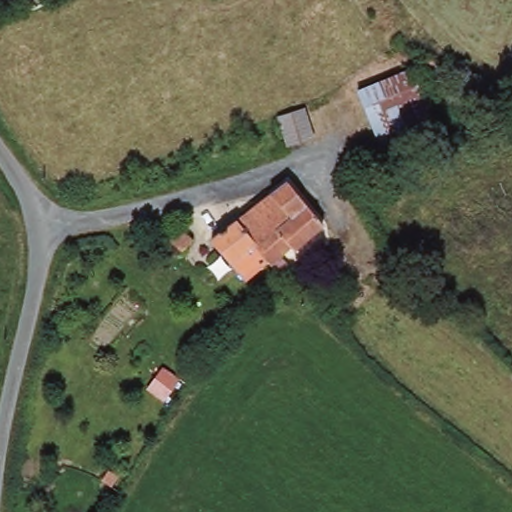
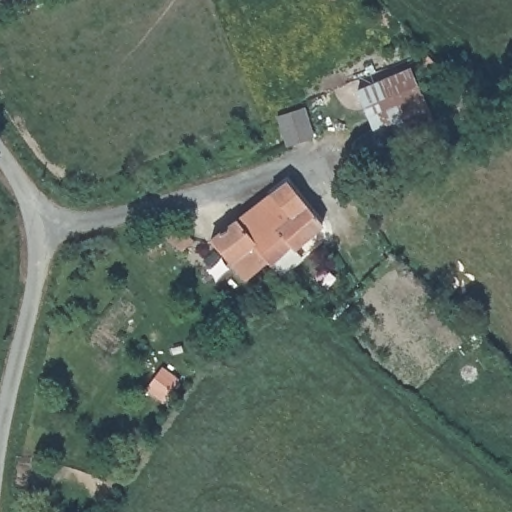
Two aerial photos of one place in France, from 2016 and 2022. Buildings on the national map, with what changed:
unchanged [(448,69),(440,77),(418,55),(427,46),(448,69)]
unchanged [(440,131),(385,152),(356,83),(410,60),(440,131)]
unchanged [(312,137),(286,146),(277,118),(302,110),(312,137)]
unchanged [(293,246),(290,242),(278,252),(291,265),(283,272),(266,257),(254,242),(287,217),(267,191),(282,179),(287,177),(323,222),(293,246)]
unchanged [(287,217),(254,242),(266,257),(244,276),(211,237),(267,191),(287,217)]
unchanged [(192,242),(182,253),(181,252),(167,240),(177,229),(192,242)]

